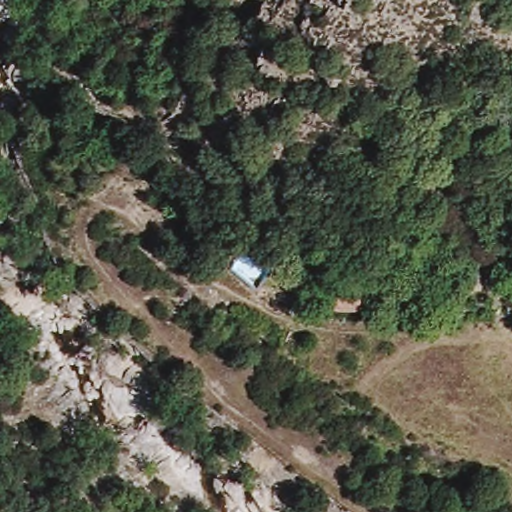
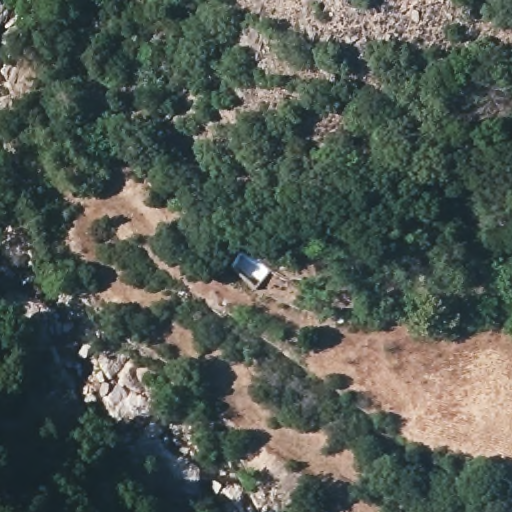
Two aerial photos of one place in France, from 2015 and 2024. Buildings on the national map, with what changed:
unchanged [(330,280),(370,284),(365,311),(327,304),(330,280)]

